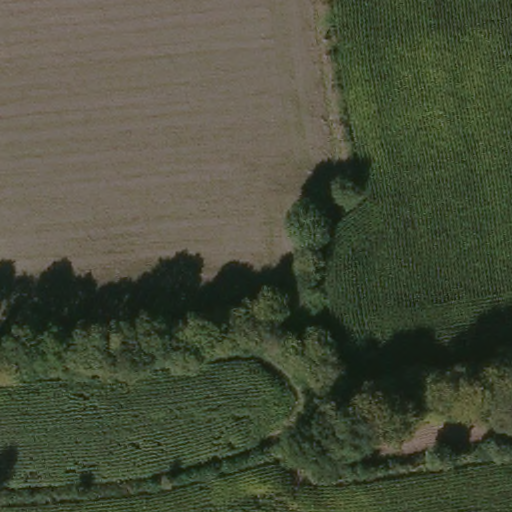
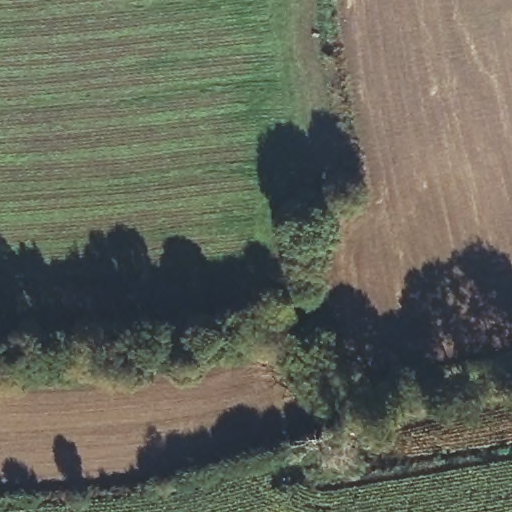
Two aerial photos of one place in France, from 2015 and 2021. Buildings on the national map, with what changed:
[]

